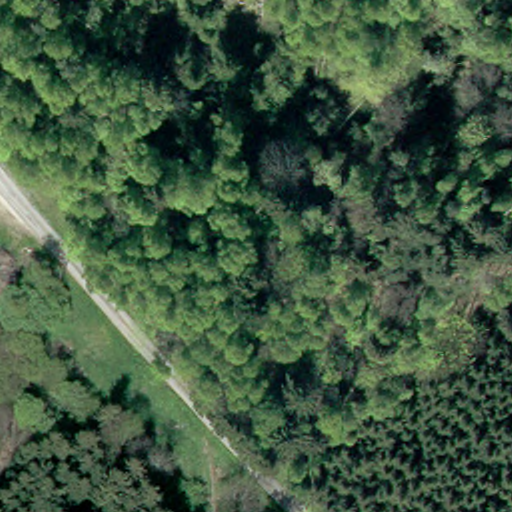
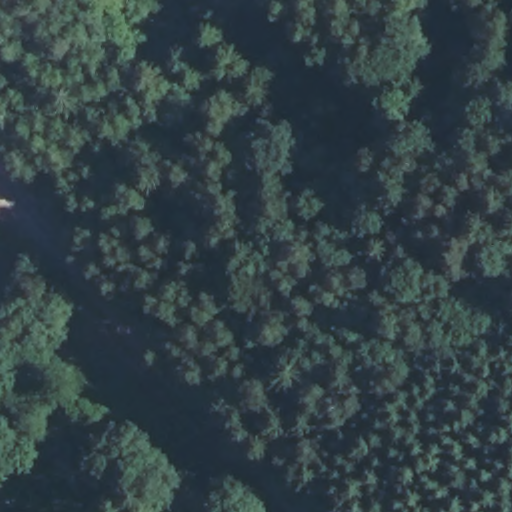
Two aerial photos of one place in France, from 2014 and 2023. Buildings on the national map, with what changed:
unchanged [(119,171),(97,191),(83,179),(104,156),(119,171)]

